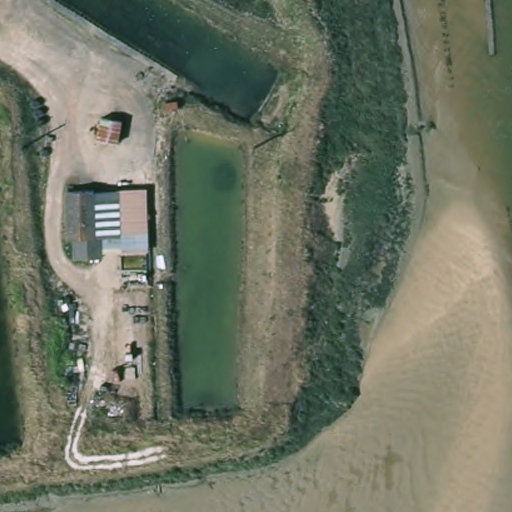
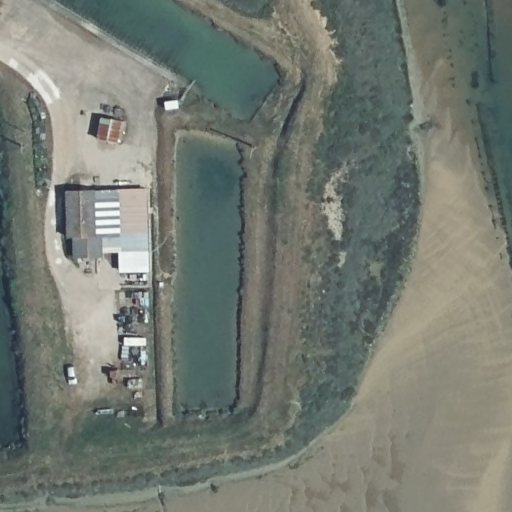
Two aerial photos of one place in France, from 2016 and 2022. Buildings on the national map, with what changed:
unchanged [(126,119),(121,144),(100,141),(104,117),(126,119)]
unchanged [(68,238),(66,191),(94,189),(119,188),(146,189),(148,252),(123,252),(103,253),(103,257),(74,258),(73,238),(68,238)]

